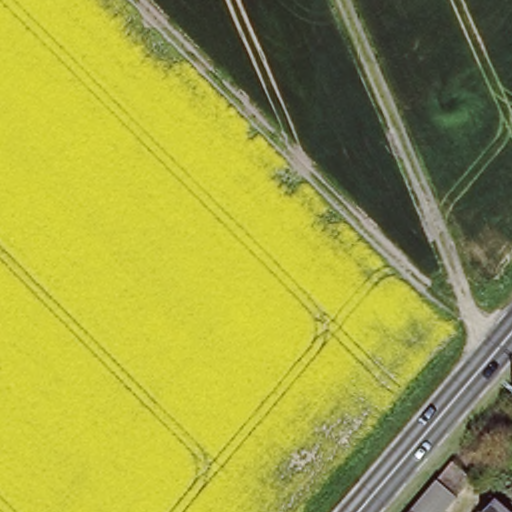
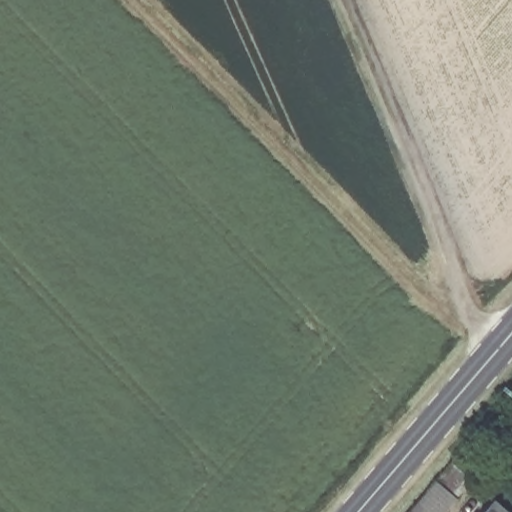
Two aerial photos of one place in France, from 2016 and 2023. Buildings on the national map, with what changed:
unchanged [(449,512),(416,512),(414,510),(438,482),(456,462),(467,472),(450,492),(460,499),(449,512)]
unchanged [(496,494),(512,508),(512,512),(480,512),(496,494)]
unchanged [(416,512),(412,512),(414,510),(416,512)]

